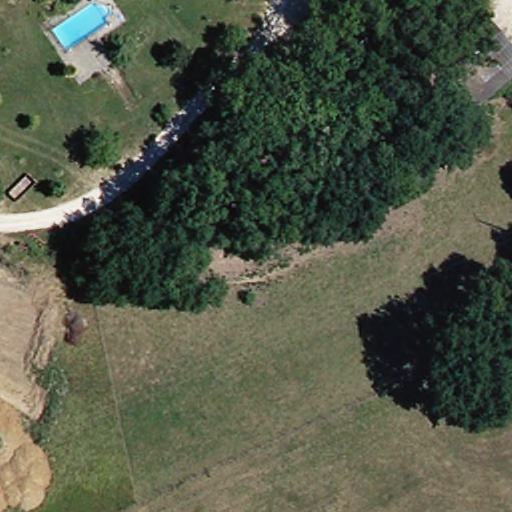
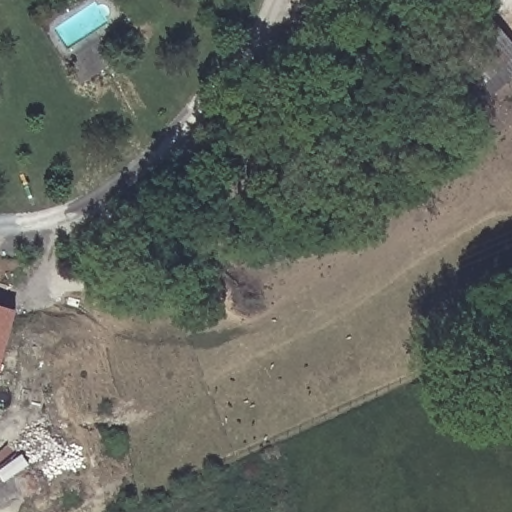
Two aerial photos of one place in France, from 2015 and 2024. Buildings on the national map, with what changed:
unchanged [(512,35),(512,75),(504,80),(481,102),(443,61),(467,40),(497,19),(512,35)]
unchanged [(101,46),(120,75),(97,90),(79,62),(101,46)]
new [(0,307),(15,311),(0,364),(0,307)]

